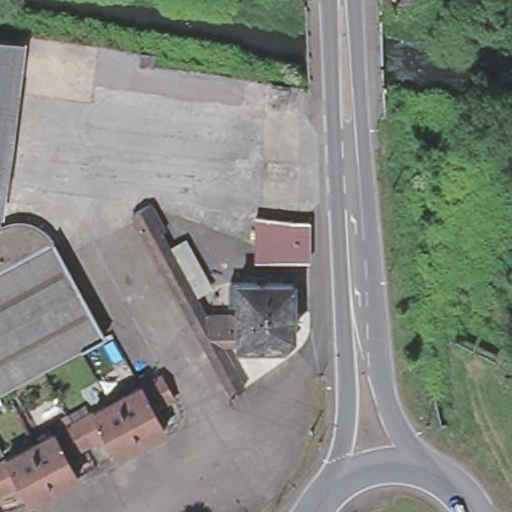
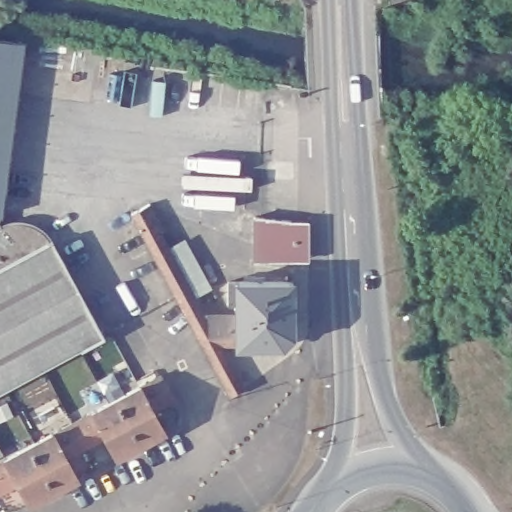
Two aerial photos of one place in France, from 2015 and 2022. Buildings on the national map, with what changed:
unchanged [(399,0),(417,0),(417,4),(400,6),(399,0)]
unchanged [(0,200),(0,42),(21,45),(0,200)]
unchanged [(229,307),(229,286),(236,286),(290,285),(291,339),(280,349),(236,350),(236,346),(219,349),(242,392),(230,399),(146,242),(132,216),(150,209),(163,234),(158,236),(170,258),(186,249),(210,294),(195,303),(207,325),(236,318),(236,307),(229,307)]
unchanged [(254,219),(292,224),(291,265),(255,264),(253,246),(254,219)]
unchanged [(13,223),(22,224),(30,226),(36,228),(42,233),(52,243),(0,271),(0,228),(5,225),(13,223)]
unchanged [(0,396),(0,271),(52,243),(103,340),(0,396)]
unchanged [(104,440),(90,416),(138,390),(159,379),(172,402),(152,414),(163,433),(115,460),(104,440)]
unchanged [(90,416),(104,440),(65,461),(52,437),(90,416)]
unchanged [(65,461),(76,481),(28,506),(17,486),(0,496),(0,465),(5,463),(52,437),(65,461)]
unchanged [(0,458),(0,455),(1,457),(0,458)]

